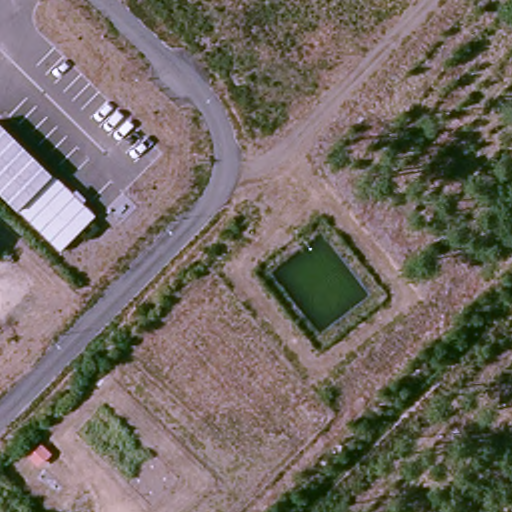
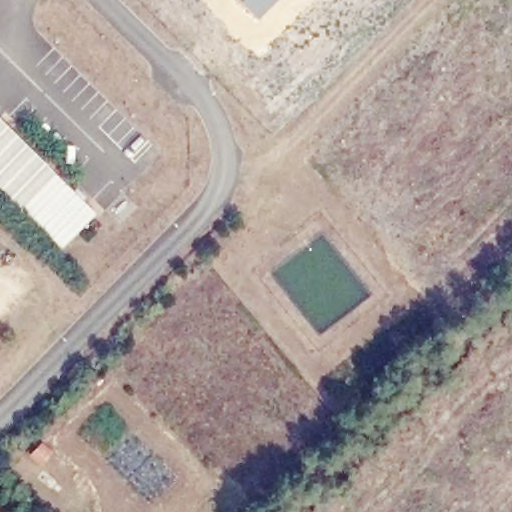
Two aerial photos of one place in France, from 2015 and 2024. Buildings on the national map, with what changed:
new [(257,21),(237,0),(279,0),(257,21)]
unchanged [(53,176),(54,175),(94,215),(60,251),(19,211),(21,210),(0,190),(0,124),(53,176)]

